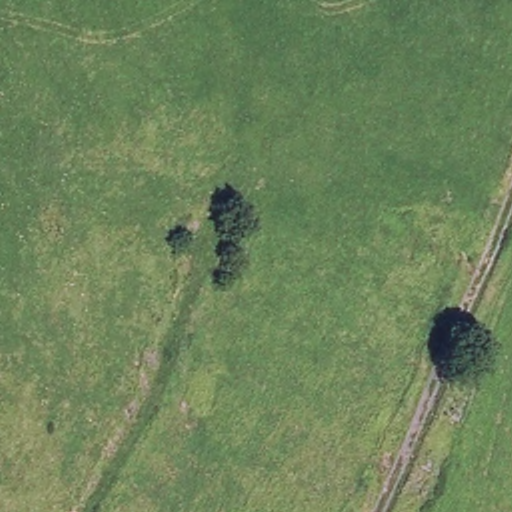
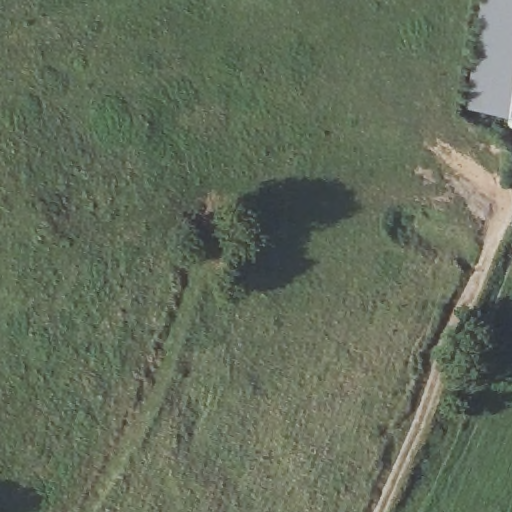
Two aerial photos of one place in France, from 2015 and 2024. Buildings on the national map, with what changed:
new [(512,115),(465,109),(479,0),(512,0),(512,115)]

